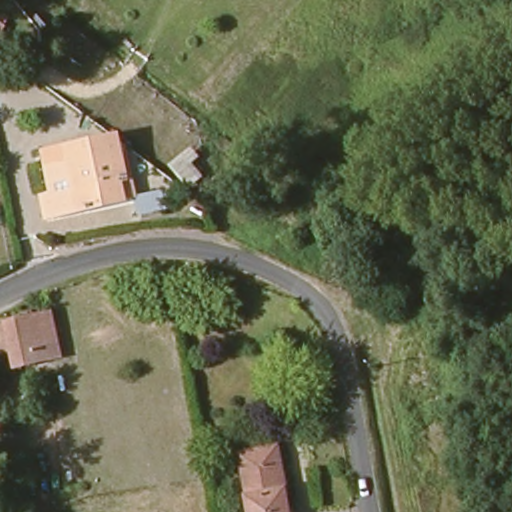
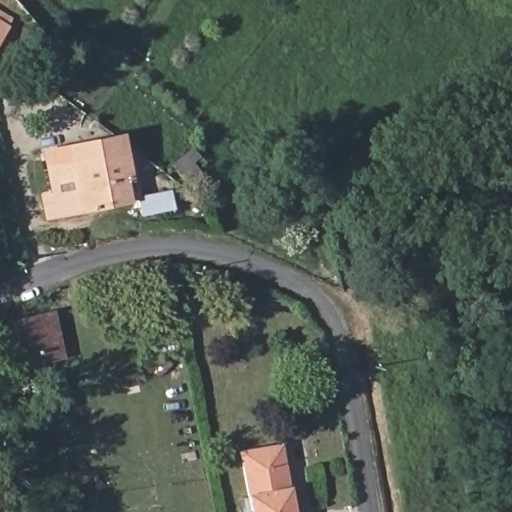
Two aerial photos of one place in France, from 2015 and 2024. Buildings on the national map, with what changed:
unchanged [(47,165),(44,149),(119,135),(122,150),(47,165)]
unchanged [(38,192),(46,190),(51,190),(47,165),(122,150),(128,176),(120,178),(123,200),(49,215),(43,216),(38,192)]
unchanged [(135,210),(132,195),(162,189),(165,205),(135,210)]
unchanged [(60,364),(15,367),(13,351),(2,351),(0,325),(12,325),(11,321),(57,318),(60,364)]
unchanged [(252,512),(241,448),(277,442),(290,512),(252,512)]

